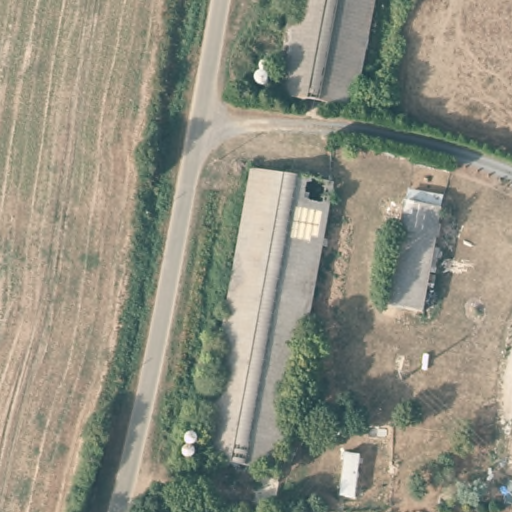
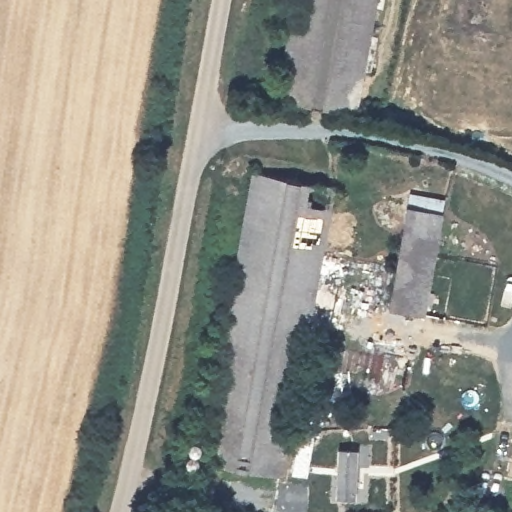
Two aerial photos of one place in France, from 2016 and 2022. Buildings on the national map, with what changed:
unchanged [(278,100),(298,0),(376,0),(357,102),(355,111),(292,100),(278,100)]
unchanged [(332,181),(280,468),(201,459),(255,169),(332,181)]
unchanged [(422,308),(392,303),(409,199),(442,205),(422,308)]

